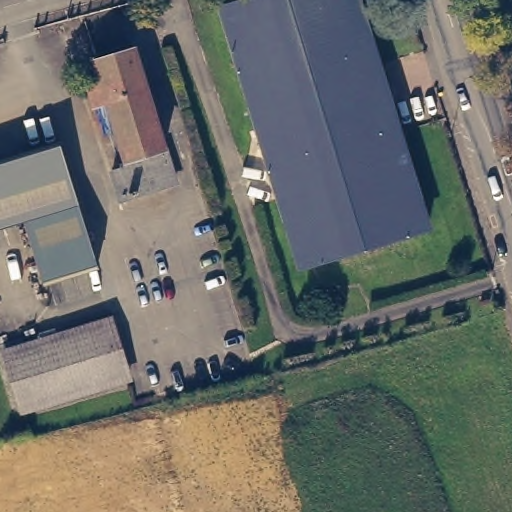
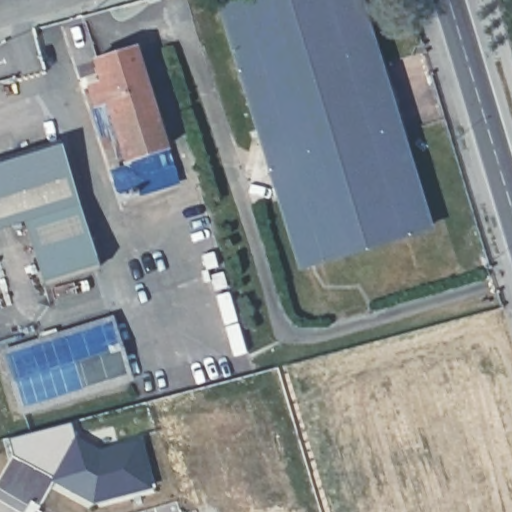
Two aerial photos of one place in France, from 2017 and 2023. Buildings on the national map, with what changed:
unchanged [(365,0),(383,59),(404,127),(433,223),(305,262),(225,3),(235,0),(365,0)]
unchanged [(98,87),(111,83),(104,60),(143,48),(185,176),(130,194),(122,173),(137,168),(117,102),(105,106),(98,87)]
unchanged [(98,263),(45,280),(25,216),(0,225),(0,161),(58,142),(98,263)]
unchanged [(115,309),(137,378),(23,411),(3,344),(115,309)]
new [(132,485),(110,493),(108,490),(90,498),(55,479),(56,477),(14,456),(10,438),(72,422),(77,439),(95,450),(132,436),(143,464),(149,479),(132,485)]

